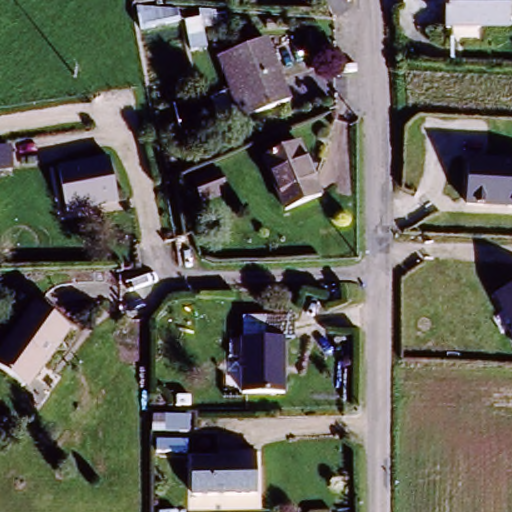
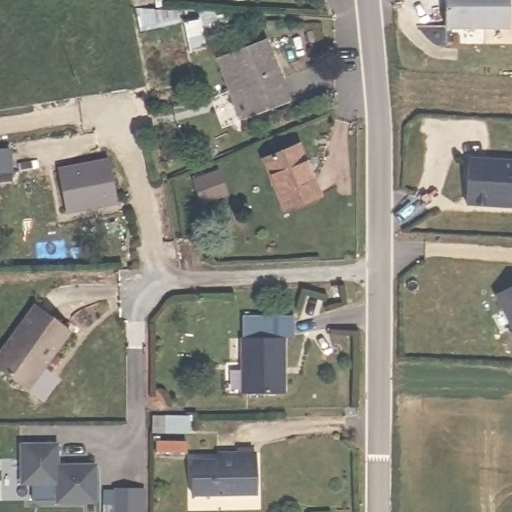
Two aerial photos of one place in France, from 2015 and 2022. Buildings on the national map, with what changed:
unchanged [(503,27),(440,25),(441,0),(504,0),(503,27)]
unchanged [(256,45),(278,100),(240,116),(217,61),(256,45)]
unchanged [(0,148),(10,147),(11,169),(0,169),(0,148)]
unchanged [(264,167),(299,152),(320,200),(285,215),(264,167)]
unchanged [(512,160),(512,205),(506,205),(506,202),(481,201),(480,204),(463,203),(465,158),(512,160)]
unchanged [(82,210),(63,214),(54,171),(104,160),(112,197),(113,203),(82,210)]
unchanged [(506,295),(512,292),(512,307),(506,295)]
unchanged [(65,332),(22,390),(0,376),(0,350),(30,307),(65,332)]
unchanged [(235,320),(294,319),(295,341),(283,342),(283,394),(235,395),(235,320)]
new [(58,448),(60,469),(97,468),(98,504),(59,506),(58,487),(24,488),(22,449),(58,448)]
unchanged [(218,451),(254,451),(255,496),(190,496),(190,464),(218,463),(218,451)]
new [(143,512),(120,512),(119,491),(142,490),(143,512)]

